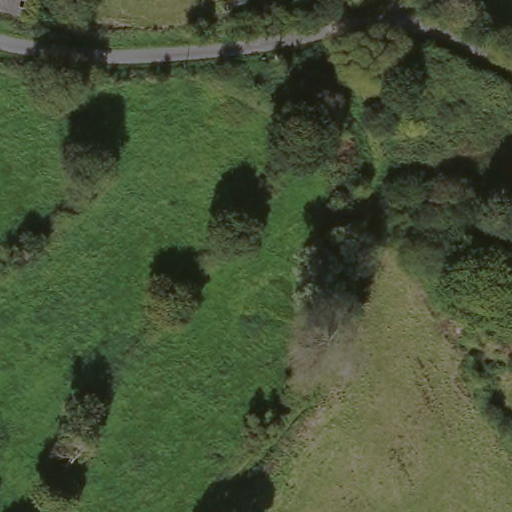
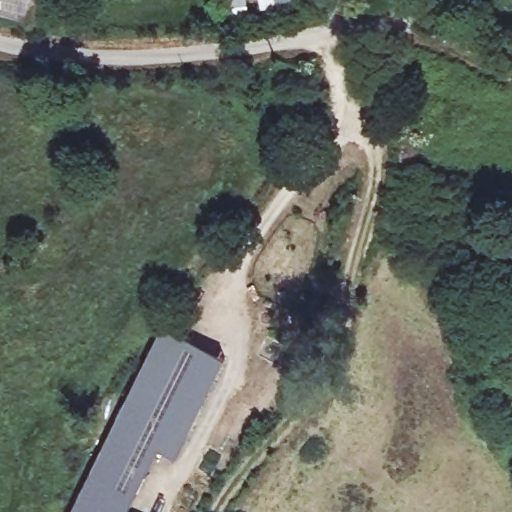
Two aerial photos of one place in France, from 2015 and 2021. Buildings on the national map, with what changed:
unchanged [(36,0),(28,28),(0,21),(0,0),(36,0)]
new [(226,357),(178,455),(160,449),(131,512),(71,512),(161,328),(226,357)]

